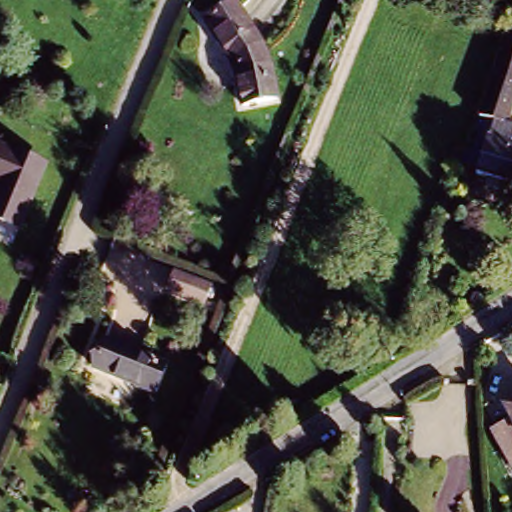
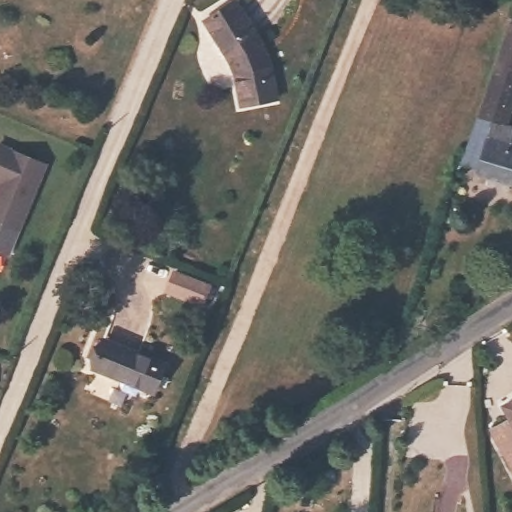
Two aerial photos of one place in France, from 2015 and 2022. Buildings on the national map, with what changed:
unchanged [(230,65),(226,56),(204,19),(228,0),(233,0),(257,39),(269,62),(273,100),(238,108),(230,65)]
unchanged [(489,189),(486,185),(489,177),(474,172),(480,154),(474,152),(467,150),(478,116),(484,93),(483,92),(507,21),(512,22),(512,86),(507,104),(512,106),(512,130),(511,134),(512,134),(512,183),(510,190),(504,193),(489,189)]
unchanged [(0,181),(0,159),(6,146),(51,167),(23,230),(0,220),(0,184),(1,182),(0,181)]
unchanged [(176,271),(206,283),(199,300),(169,288),(176,271)]
unchanged [(90,367),(103,338),(163,365),(151,393),(90,367)]
unchanged [(499,408),(512,401),(512,430),(507,422),(499,408)]
unchanged [(512,430),(512,473),(489,432),(507,422),(512,430)]

